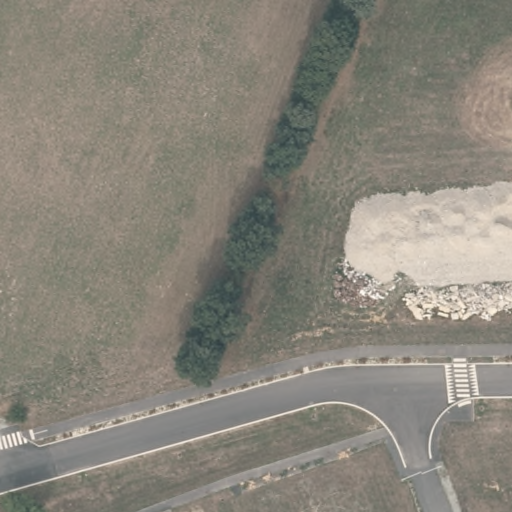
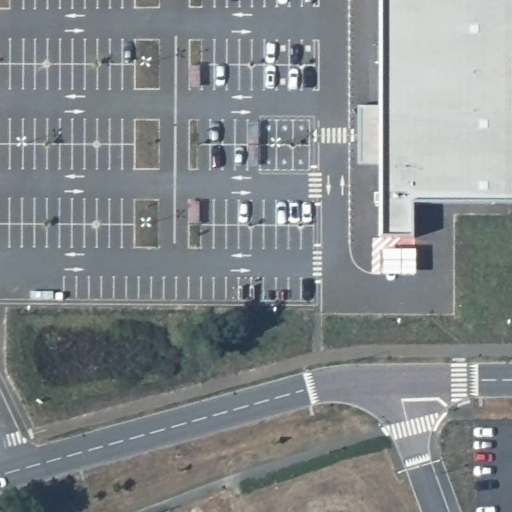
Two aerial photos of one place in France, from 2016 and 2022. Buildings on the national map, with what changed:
new [(512,240),(386,240),(389,0),(512,0),(512,240)]

